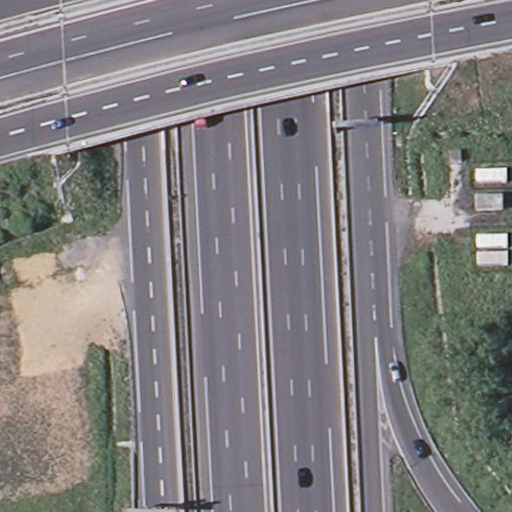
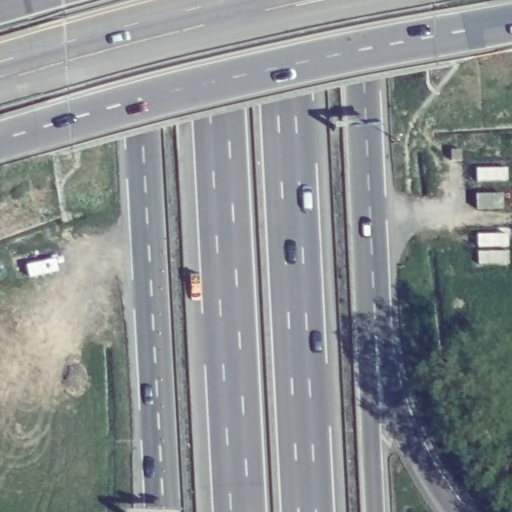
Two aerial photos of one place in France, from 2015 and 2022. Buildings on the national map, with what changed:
unchanged [(475,214),(474,196),(500,196),(500,214),(475,214)]
unchanged [(17,286),(10,257),(43,248),(53,275),(17,286)]

